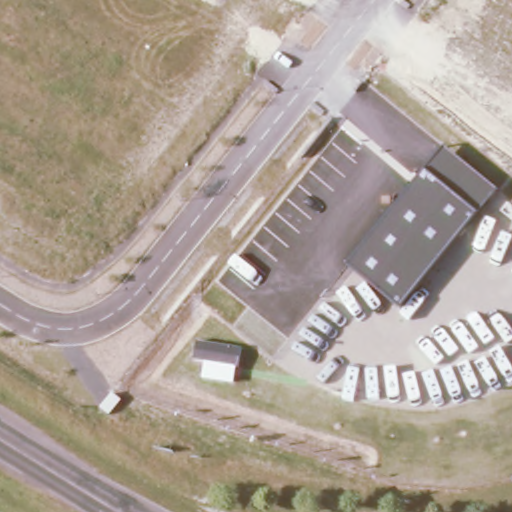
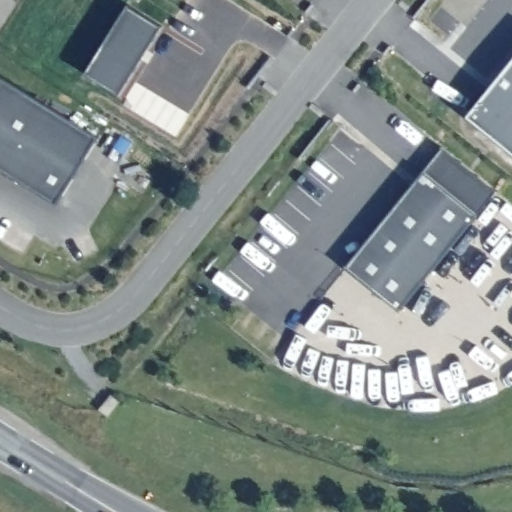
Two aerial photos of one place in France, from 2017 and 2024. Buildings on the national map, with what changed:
new [(130,6),(162,26),(120,93),(88,73),(130,6)]
new [(512,64),(512,155),(467,119),(512,64)]
new [(97,136),(55,206),(0,172),(0,77),(97,136)]
unchanged [(425,171),(445,147),(498,190),(477,214),(401,309),(349,266),(425,171)]

